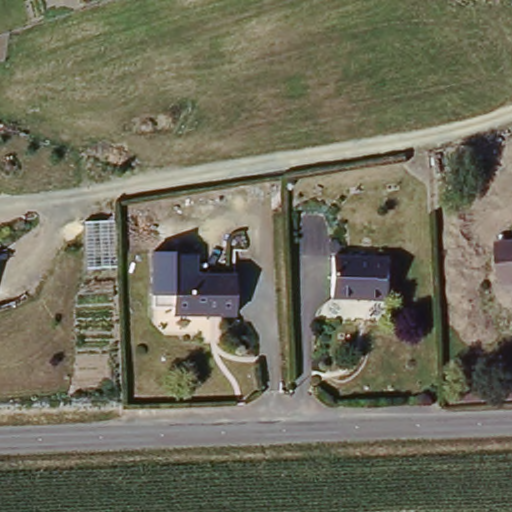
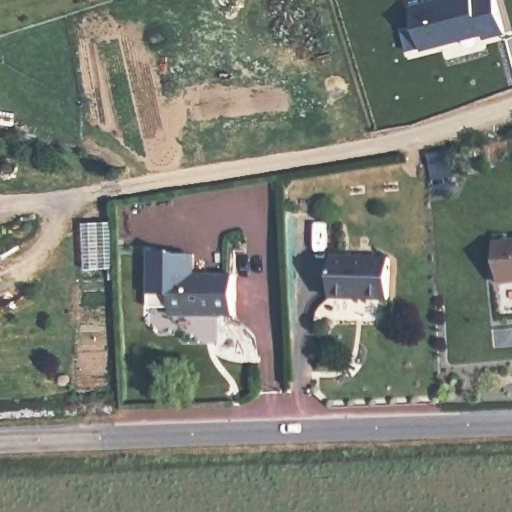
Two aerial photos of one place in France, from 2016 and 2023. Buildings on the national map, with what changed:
new [(423,51),(412,9),(446,0),(497,0),(506,34),(485,40),(483,35),(462,41),(423,51)]
unchanged [(512,284),(507,285),(501,245),(512,243),(512,284)]
unchanged [(152,307),(152,253),(198,252),(198,278),(171,279),(172,307),(152,307)]
unchanged [(392,258),(391,300),(333,297),(333,256),(392,258)]
unchanged [(235,277),(235,320),(172,321),(171,279),(235,277)]

